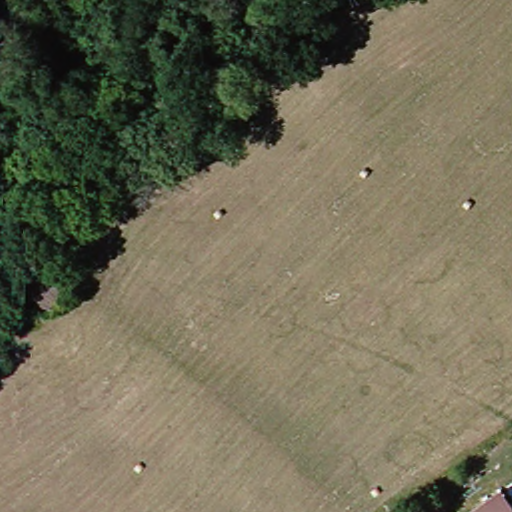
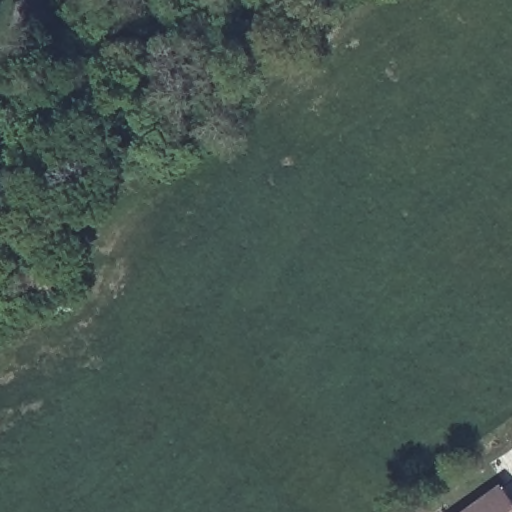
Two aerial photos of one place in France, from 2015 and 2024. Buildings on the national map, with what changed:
unchanged [(508,512),(459,512),(488,488),(508,512)]

